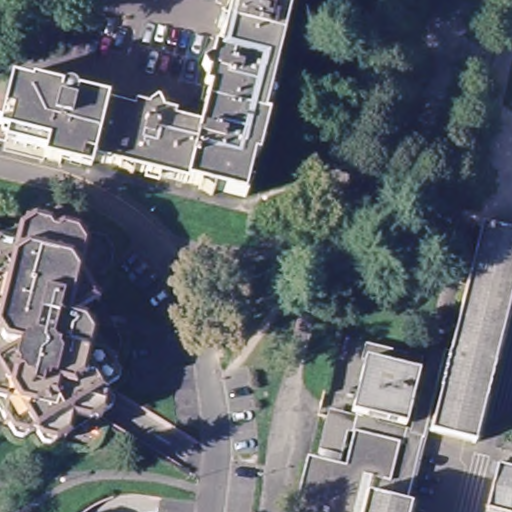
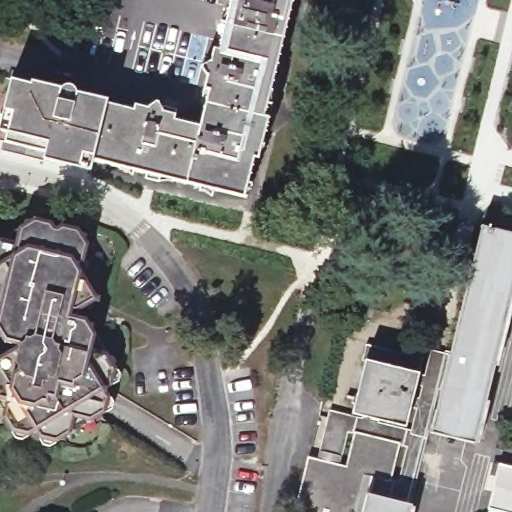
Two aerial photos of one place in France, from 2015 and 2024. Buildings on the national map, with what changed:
unchanged [(136,112),(138,104),(153,109),(151,114),(163,118),(164,111),(180,115),(178,121),(204,128),(217,80),(209,79),(213,66),(218,67),(235,0),(295,0),(273,94),(279,94),(275,109),(280,110),(277,123),(273,122),(263,163),(258,161),(248,202),(94,163),(110,105),(136,112)]
unchanged [(13,134),(6,133),(20,83),(58,92),(110,105),(94,163),(93,168),(64,160),(49,156),(50,153),(20,145),(10,143),(13,134)]
unchanged [(15,229),(21,226),(23,219),(28,220),(31,218),(48,221),(51,225),(56,228),(60,224),(78,228),(86,242),(81,273),(84,280),(77,311),(71,310),(70,317),(85,320),(95,335),(90,359),(106,364),(113,377),(110,392),(113,397),(109,412),(104,414),(74,407),(67,437),(63,439),(63,444),(57,441),(55,443),(37,439),(36,436),(31,435),(28,437),(11,434),(9,431),(4,429),(5,426),(2,421),(0,415),(0,255),(7,256),(15,229)]
unchanged [(475,452),(430,440),(447,371),(480,234),(512,242),(512,302),(475,452)]
unchanged [(355,421),(368,372),(361,369),(366,353),(425,366),(406,433),(355,421)]
unchanged [(430,440),(411,434),(429,368),(447,371),(430,440)]
unchanged [(424,461),(350,443),(339,479),(315,473),(329,414),(355,421),(406,433),(411,434),(430,440),(424,461)]
unchanged [(304,471),(315,473),(339,479),(350,443),(424,461),(410,512),(294,512),(304,471)]
unchanged [(512,467),(512,512),(492,512),(487,511),(499,464),(512,467)]

